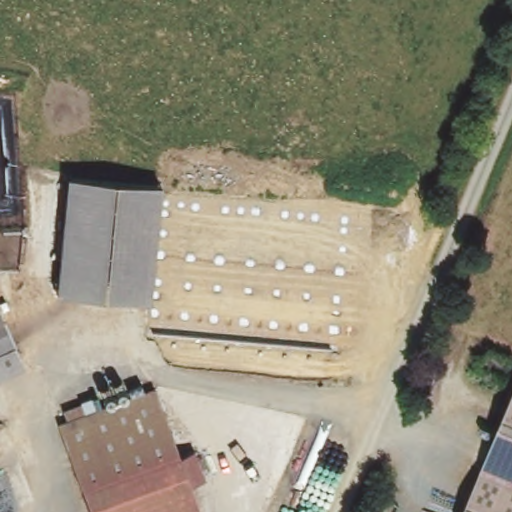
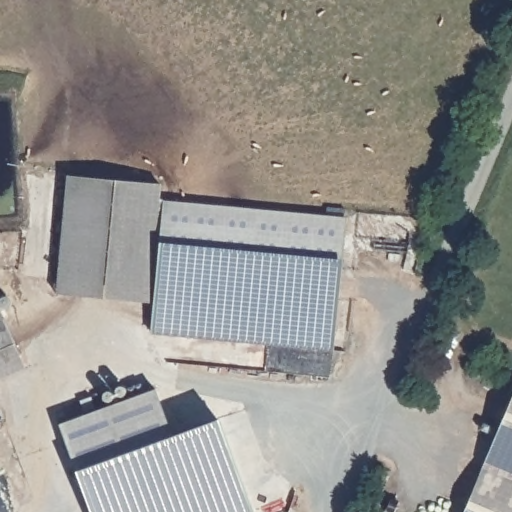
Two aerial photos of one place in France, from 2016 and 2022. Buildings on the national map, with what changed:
unchanged [(147,258),(65,248),(74,178),(165,187),(155,258),(147,258)]
new [(346,218),(335,350),(150,331),(154,301),(151,302),(155,258),(163,199),(346,218)]
unchanged [(151,302),(60,294),(65,248),(147,258),(155,258),(151,302)]
unchanged [(0,374),(0,315),(22,363),(0,374)]
unchanged [(216,418),(250,512),(92,512),(76,470),(58,425),(155,389),(172,435),(216,418)]
unchanged [(461,512),(512,391),(512,512),(461,512)]
demolished [(62,411),(77,406),(80,415),(66,420),(62,411)]

